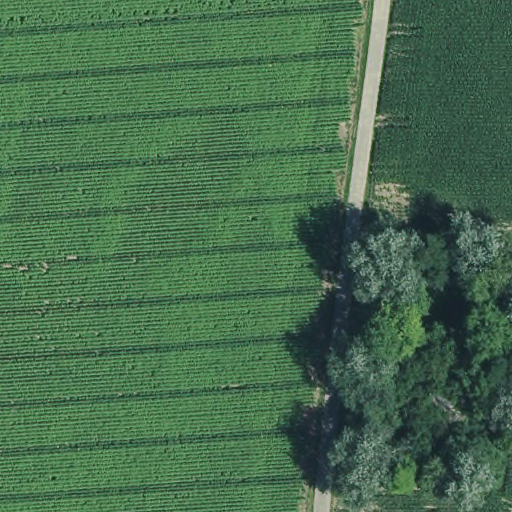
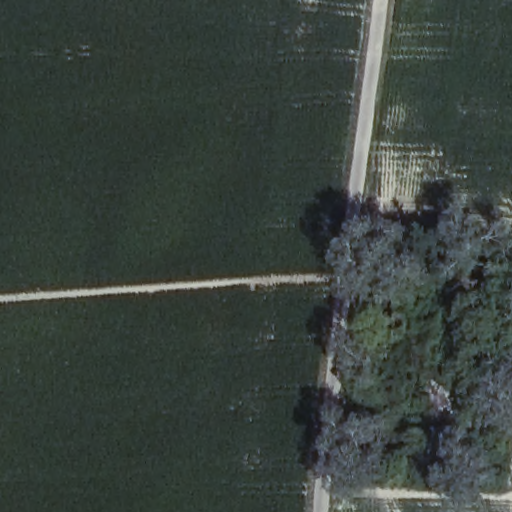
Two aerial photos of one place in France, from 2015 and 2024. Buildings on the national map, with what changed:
unchanged [(417,405),(436,373),(462,389),(439,419),(417,405)]

